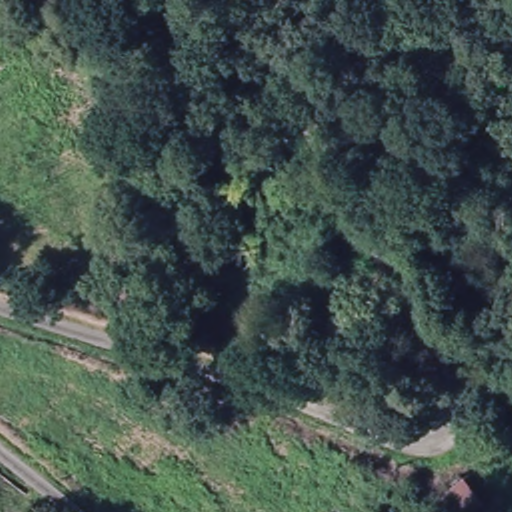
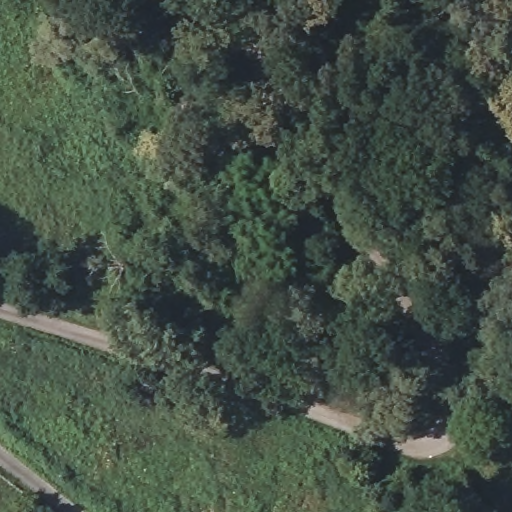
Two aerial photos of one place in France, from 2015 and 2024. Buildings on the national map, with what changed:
unchanged [(488,503),(476,512),(429,512),(424,507),(460,475),(488,503)]

